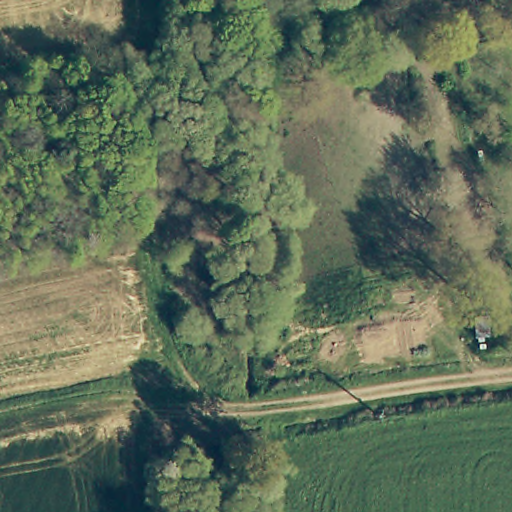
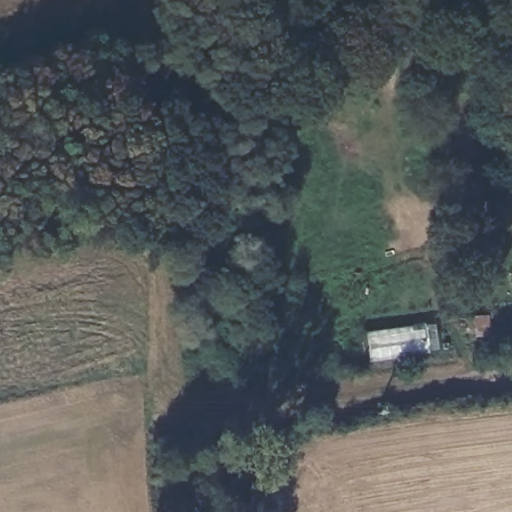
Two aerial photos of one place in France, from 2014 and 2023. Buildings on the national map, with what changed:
unchanged [(475,338),(473,319),(484,318),(486,337),(475,338)]

